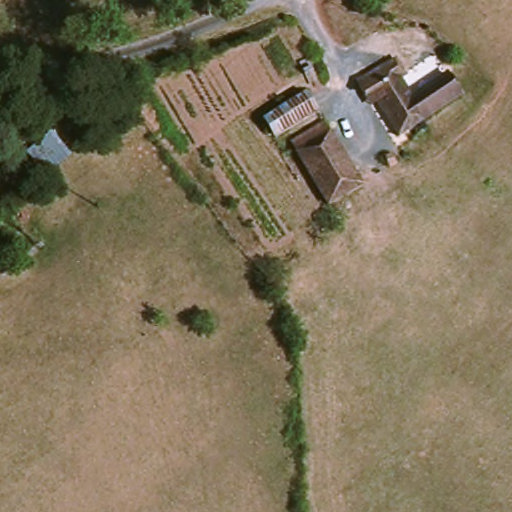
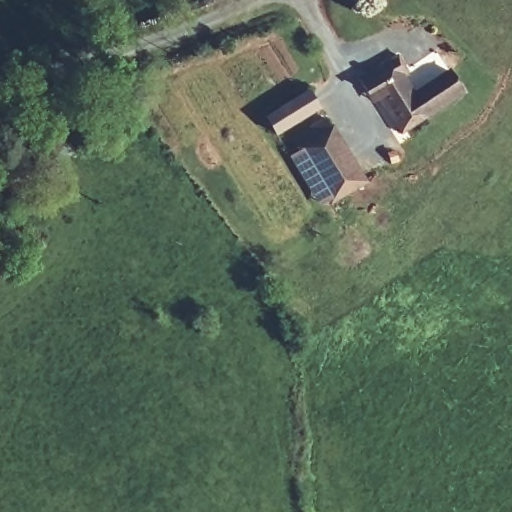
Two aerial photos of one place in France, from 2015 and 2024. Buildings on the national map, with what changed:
unchanged [(467,92),(407,131),(377,86),(373,90),(364,76),(405,49),(420,70),(412,74),(425,91),(453,73),(467,92)]
unchanged [(315,86),(325,104),(280,131),(270,114),(315,86)]
unchanged [(327,116),(367,177),(319,202),(292,156),(303,149),(295,136),(327,116)]

